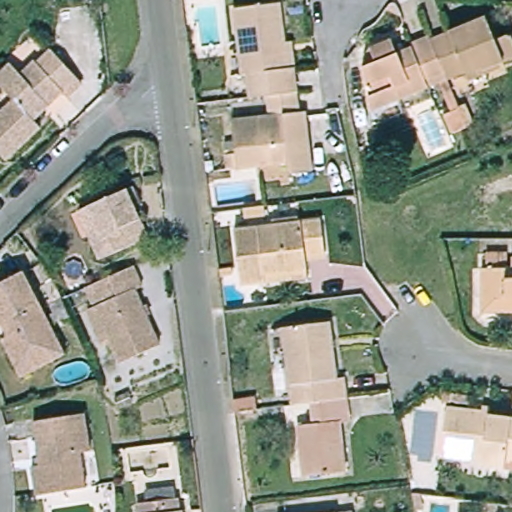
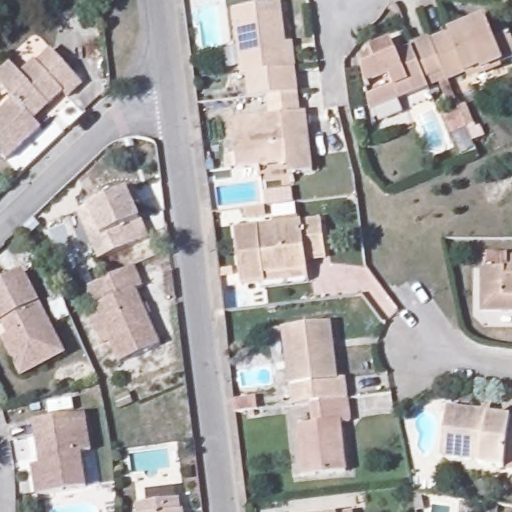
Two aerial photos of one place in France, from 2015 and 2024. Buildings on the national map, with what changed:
unchanged [(248,75),(236,77),(232,43),(239,42),(235,11),(280,5),(285,44),(291,43),(297,93),(268,96),(251,99),(248,75)]
unchanged [(435,73),(422,41),(477,20),(486,41),(501,35),(510,56),(490,65),(491,69),(460,81),(456,73),(438,80),(435,73)]
unchanged [(364,122),(362,112),(353,70),(360,50),(382,42),(388,56),(404,50),(402,45),(421,39),(422,41),(435,73),(416,81),(419,89),(379,105),(383,114),(364,122)]
unchanged [(35,127),(0,160),(0,159),(0,108),(8,100),(0,91),(0,69),(5,65),(16,75),(29,62),(32,64),(46,50),(77,83),(62,96),(57,92),(44,105),(28,120),(35,127)]
unchanged [(297,93),(299,114),(305,113),(311,171),(290,173),(289,163),(228,170),(226,155),(236,155),(233,121),(271,117),(268,96),(297,93)]
unchanged [(130,191),(138,207),(132,210),(146,241),(99,262),(91,244),(78,215),(88,211),(125,194),(130,191)]
unchanged [(264,207),(265,215),(245,218),(244,210),(264,207)]
unchanged [(316,217),(320,252),(300,255),(302,272),(237,280),(230,227),(316,217)]
unchanged [(473,265),(502,265),(502,255),(512,255),(512,309),(473,310),(473,265)]
unchanged [(87,308),(94,305),(87,287),(132,266),(142,285),(133,288),(157,345),(119,362),(109,338),(102,341),(87,308)]
unchanged [(19,382),(0,346),(0,345),(7,342),(0,330),(0,289),(22,277),(57,346),(63,360),(19,382)]
unchanged [(273,328),(320,323),(327,380),(333,379),(336,400),(301,405),(283,407),(273,328)]
unchanged [(336,400),(338,421),(329,423),(335,471),(295,476),(289,427),(304,425),(301,405),(336,400)]
unchanged [(512,466),(441,457),(447,408),(482,413),(482,407),(491,408),(491,414),(491,417),(512,420),(512,466)]
unchanged [(82,418),(89,456),(78,458),(84,492),(35,500),(30,471),(38,470),(31,425),(82,418)]
unchanged [(134,505),(174,502),(176,512),(135,512),(134,505)]

